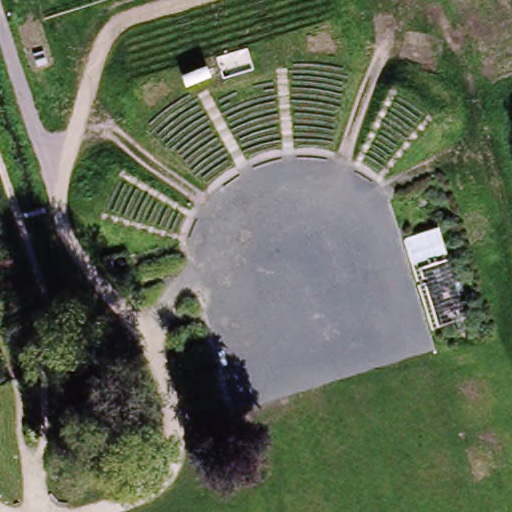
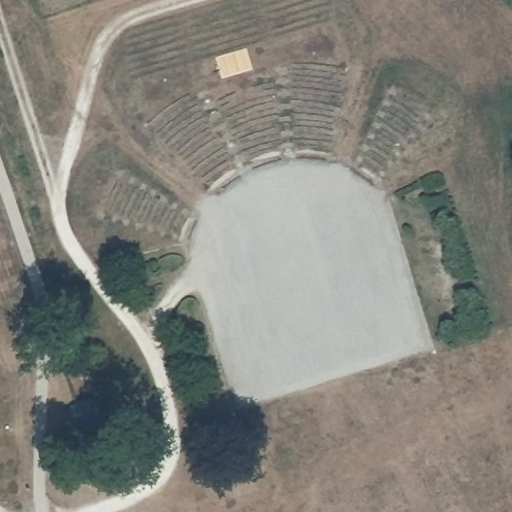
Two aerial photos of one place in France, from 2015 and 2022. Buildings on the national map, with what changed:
unchanged [(250,52),(257,75),(222,87),(217,64),(250,52)]

